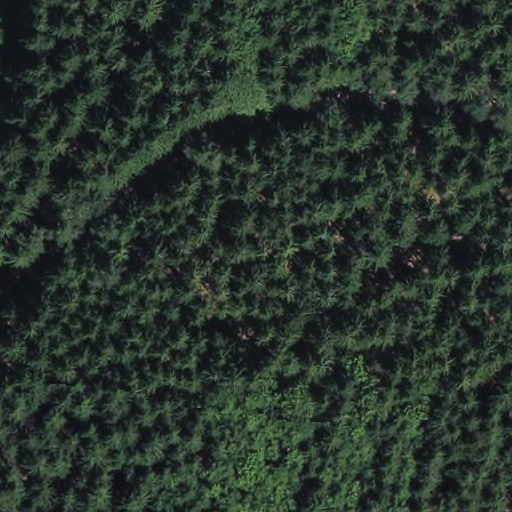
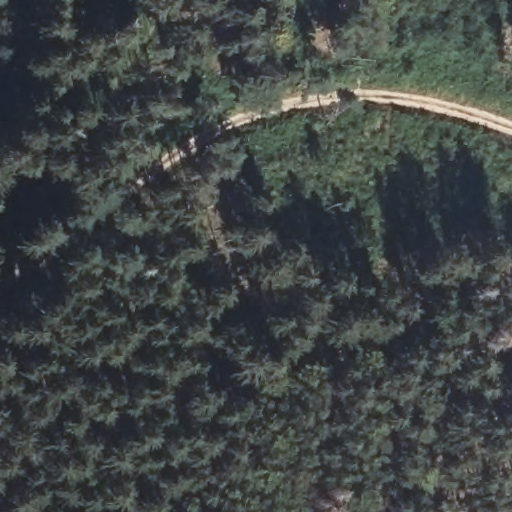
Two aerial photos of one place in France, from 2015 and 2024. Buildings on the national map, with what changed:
[]

